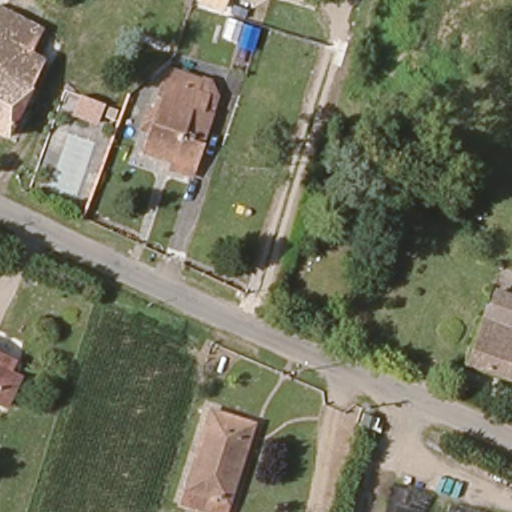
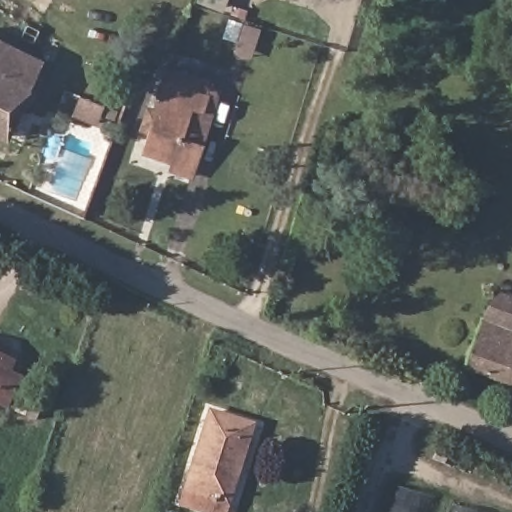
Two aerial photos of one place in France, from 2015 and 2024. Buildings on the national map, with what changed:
unchanged [(0,135),(0,9),(55,36),(9,139),(0,135)]
unchanged [(211,139),(202,137),(199,148),(202,149),(195,181),(160,171),(164,157),(153,155),(156,139),(148,137),(165,81),(168,71),(187,76),(186,86),(215,94),(213,103),(207,123),(215,126),(211,139)]
unchanged [(488,291),(512,300),(512,328),(480,316),(488,291)]
unchanged [(463,363),(480,316),(512,328),(512,382),(463,363)]
unchanged [(0,359),(10,363),(7,373),(20,377),(13,394),(8,406),(0,403),(0,359)]
unchanged [(185,494),(209,414),(252,426),(229,506),(227,512),(205,512),(183,505),(185,494)]
unchanged [(464,512),(384,512),(392,488),(464,512)]

